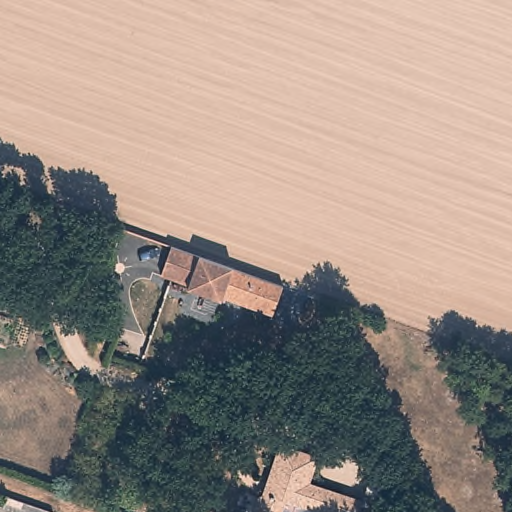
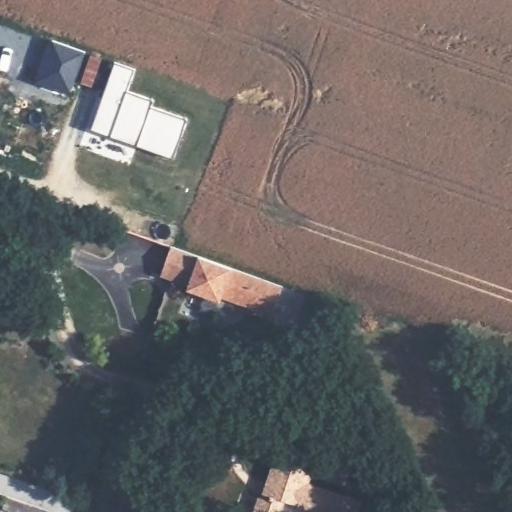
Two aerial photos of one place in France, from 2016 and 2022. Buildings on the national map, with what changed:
new [(85,53),(71,95),(33,81),(49,40),(85,53)]
new [(114,63),(131,70),(123,96),(185,119),(172,158),(92,130),(114,63)]
unchanged [(170,245),(232,267),(282,284),(272,314),(221,296),(219,300),(187,288),(188,284),(159,274),(170,245)]
unchanged [(325,455),(314,481),(368,501),(363,512),(319,512),(319,510),(290,498),(285,512),(263,512),(258,510),(286,442),(325,455)]
new [(408,504),(400,501),(386,496),(385,500),(362,492),(372,461),(396,469),(394,472),(409,477),(416,480),(408,504)]

